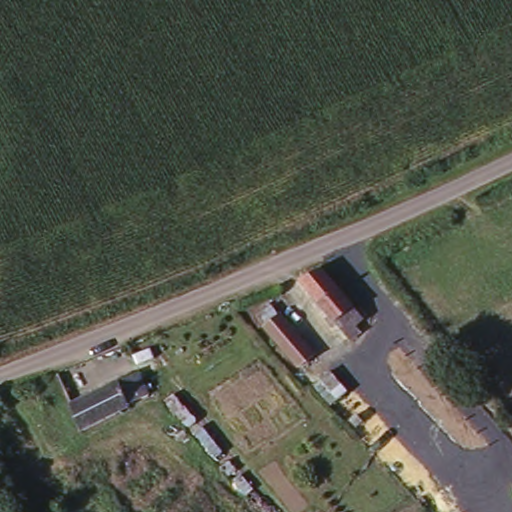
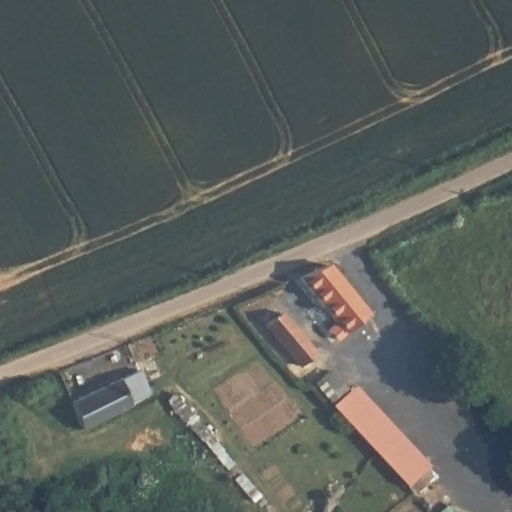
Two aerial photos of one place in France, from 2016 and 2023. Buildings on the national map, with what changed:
unchanged [(298,282),(316,275),(359,320),(342,337),(291,286),(298,282)]
unchanged [(319,352),(304,363),(265,321),(280,309),(319,352)]
unchanged [(143,395),(82,427),(67,401),(130,367),(143,395)]
new [(358,385),(402,435),(435,478),(413,495),(347,422),(345,424),(315,384),(332,371),(348,392),(358,385)]

